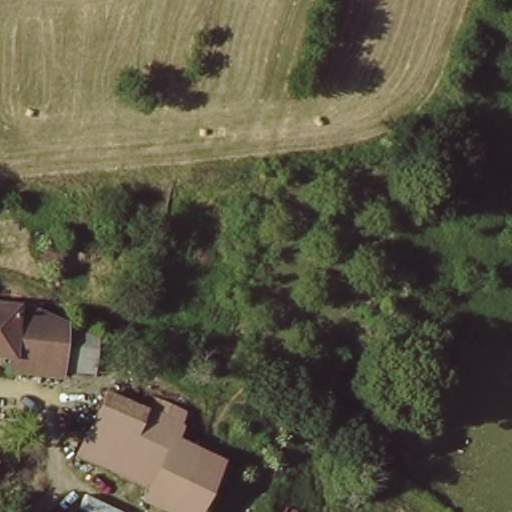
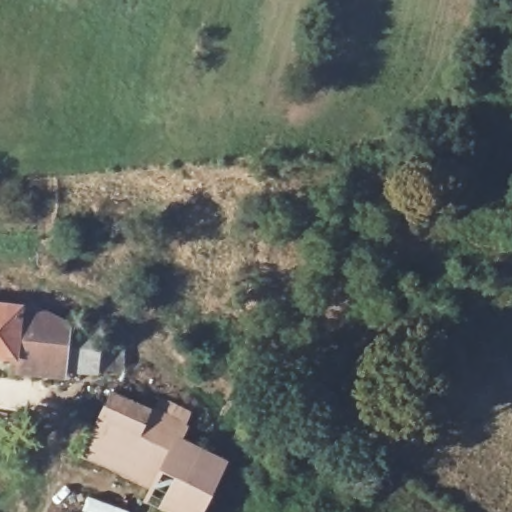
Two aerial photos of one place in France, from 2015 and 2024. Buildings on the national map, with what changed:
unchanged [(46,262),(50,240),(66,243),(61,265),(46,262)]
unchanged [(0,354),(0,308),(38,313),(47,315),(100,342),(100,350),(113,351),(113,367),(100,366),(98,377),(53,375),(38,374),(18,372),(18,356),(0,354)]
unchanged [(198,512),(164,512),(141,499),(148,488),(127,476),(81,450),(111,391),(150,411),(157,395),(167,401),(189,413),(181,427),(176,436),(224,462),(198,512)]

